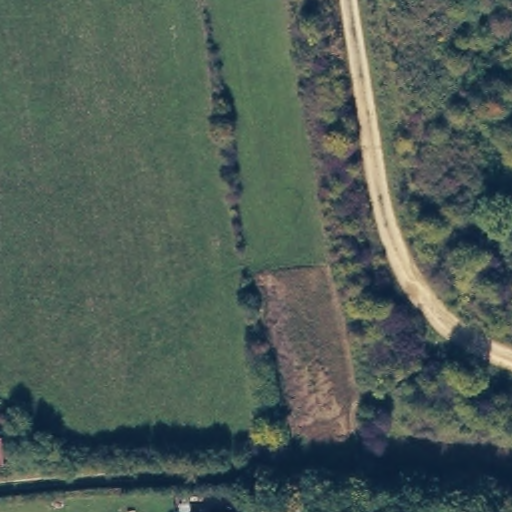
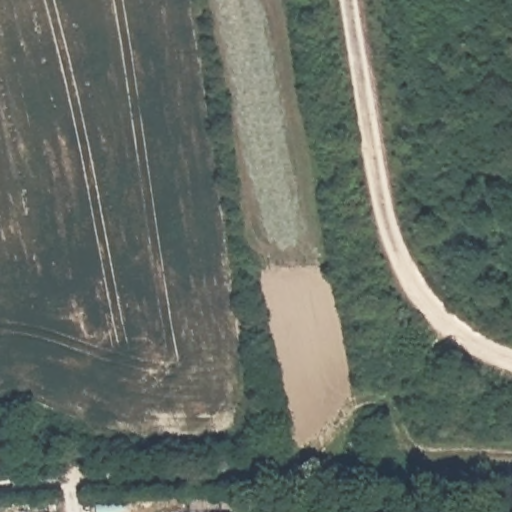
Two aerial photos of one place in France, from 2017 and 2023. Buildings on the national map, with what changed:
unchanged [(0,466),(0,434),(2,434),(2,466),(0,466)]

